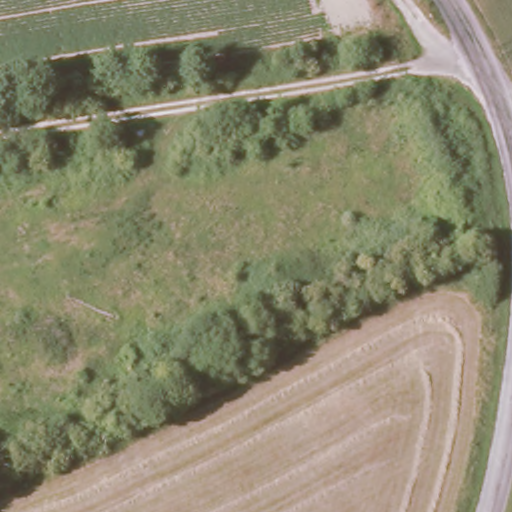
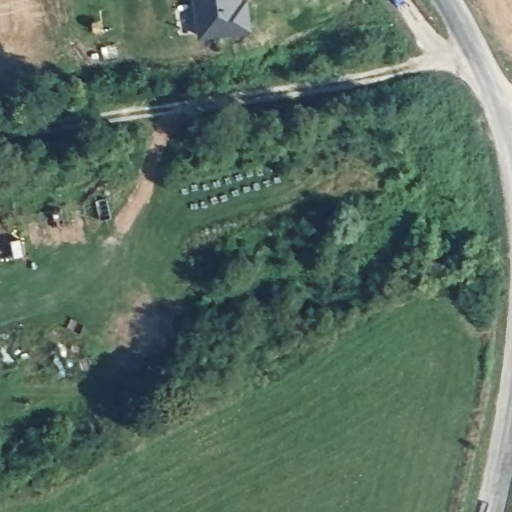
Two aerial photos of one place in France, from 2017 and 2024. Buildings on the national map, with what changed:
new [(190,0),(241,0),(248,0),(253,33),(196,41),(190,0)]

